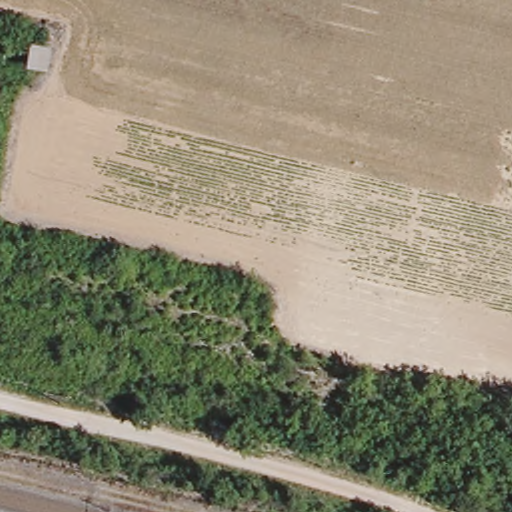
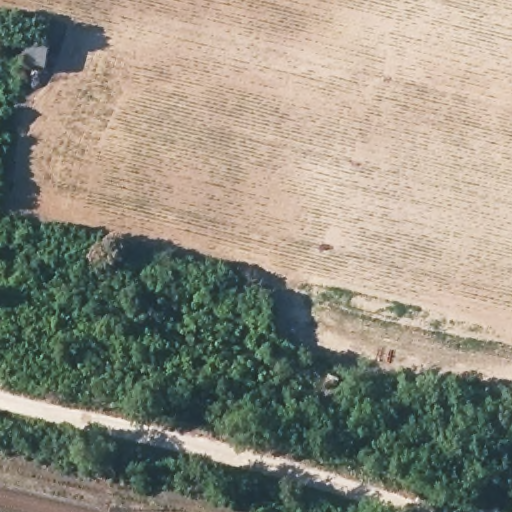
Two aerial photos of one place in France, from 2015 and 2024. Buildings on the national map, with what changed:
unchanged [(20,67),(24,41),(46,45),(42,71),(20,67)]

